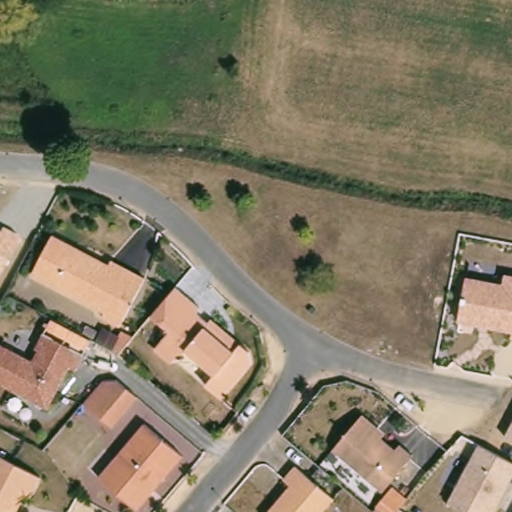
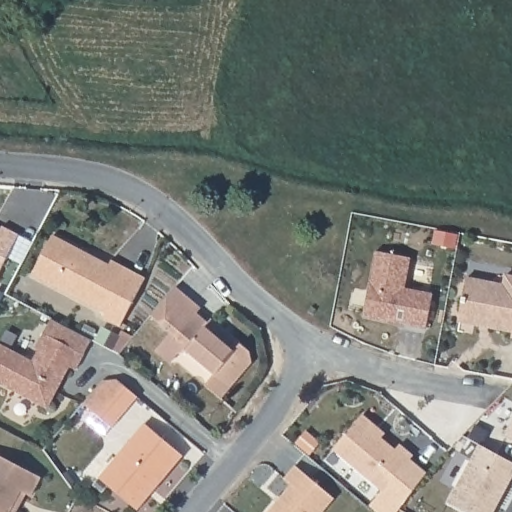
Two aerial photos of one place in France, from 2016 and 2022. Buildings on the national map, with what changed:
unchanged [(21,234),(0,273),(0,230),(3,226),(21,234)]
unchanged [(109,316),(111,312),(38,274),(59,235),(115,265),(117,260),(151,278),(126,325),(109,316)]
new [(379,252),(415,259),(409,290),(437,295),(430,330),(367,318),(379,252)]
unchanged [(468,278),(504,284),(507,275),(512,276),(512,341),(510,341),(511,332),(459,323),(468,278)]
unchanged [(161,345),(176,327),(159,312),(172,297),(183,284),(208,305),(205,309),(232,332),(229,336),(243,347),(249,339),(256,347),(259,357),(228,394),(212,380),(221,370),(193,346),(191,348),(185,349),(177,358),(161,345)]
unchanged [(35,348),(41,333),(83,354),(76,372),(70,369),(48,409),(0,384),(0,343),(32,360),(38,350),(35,348)]
unchanged [(90,402),(109,379),(123,378),(144,395),(118,426),(90,402)]
unchanged [(406,443),(419,454),(389,490),(339,448),(369,413),(384,426),(391,432),(387,436),(401,448),(406,443)]
unchanged [(105,476),(151,422),(189,454),(143,508),(105,476)]
unchanged [(505,438),(512,425),(512,442),(505,438)]
unchanged [(448,505),(479,445),(512,464),(512,479),(495,512),(462,512),(448,505)]
unchanged [(0,451),(48,476),(38,495),(33,492),(22,512),(0,512),(0,451)]
unchanged [(297,483),(290,477),(302,464),(340,497),(327,512),(273,512),(297,483)]

